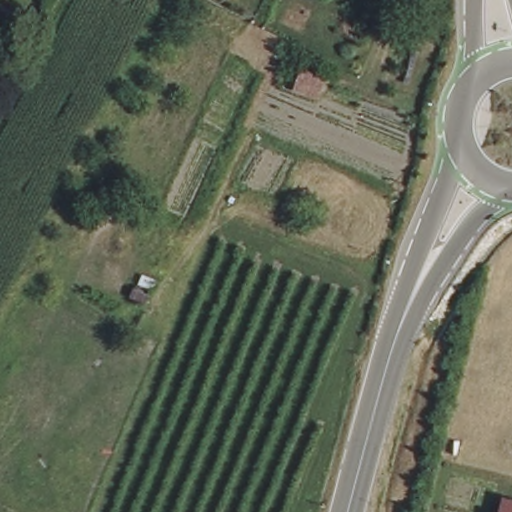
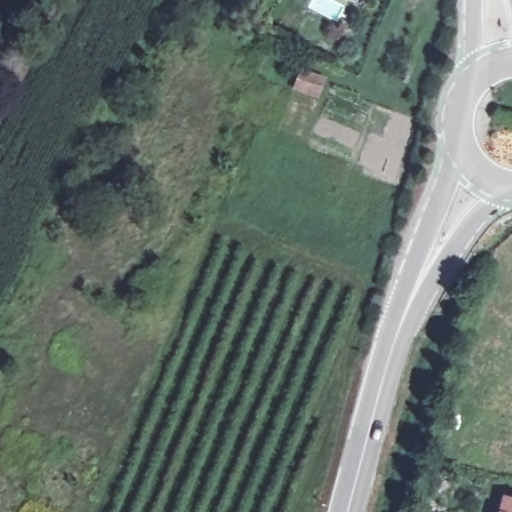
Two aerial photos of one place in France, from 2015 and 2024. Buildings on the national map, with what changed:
unchanged [(498,510),(503,511),(506,497),(512,498),(512,512),(497,512),(498,510)]

